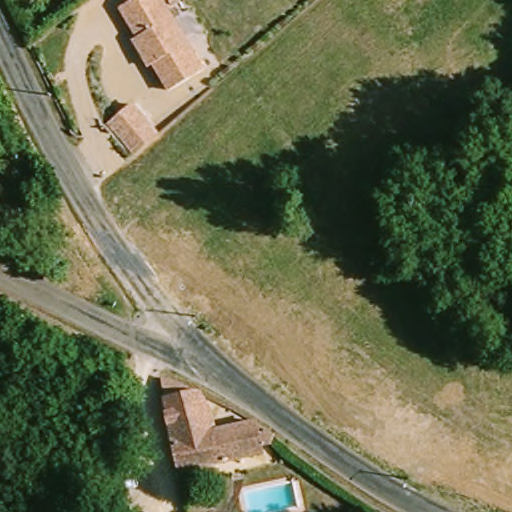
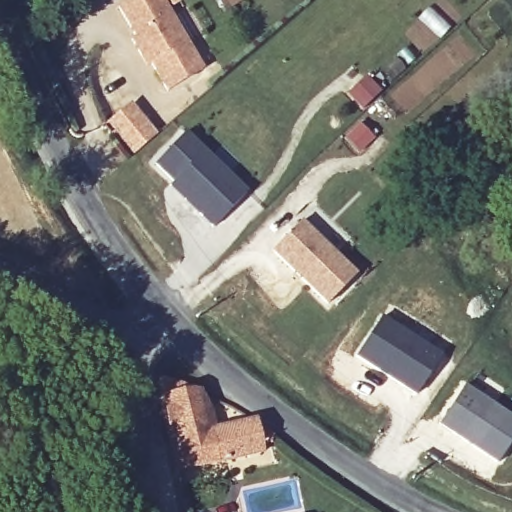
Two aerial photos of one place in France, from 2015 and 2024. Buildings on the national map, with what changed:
unchanged [(150,58),(144,56),(135,41),(138,39),(121,10),(137,0),(161,0),(169,12),(205,72),(191,80),(171,93),(150,58)]
unchanged [(160,134),(133,156),(106,123),(132,101),(160,134)]
new [(174,183),(155,164),(187,131),(247,191),(214,227),(171,186),(174,183)]
new [(272,252),(302,221),(356,274),(326,304),(272,252)]
new [(357,356),(382,316),(441,354),(416,393),(357,356)]
unchanged [(217,390),(227,405),(232,429),(272,421),(275,422),(280,451),(193,469),(176,374),(217,390)]
new [(470,391),(481,375),(506,391),(494,407),(512,419),(512,441),(499,460),(442,422),(464,388),(470,391)]

